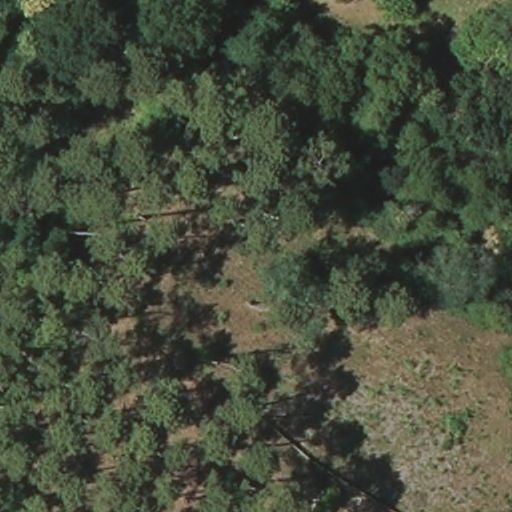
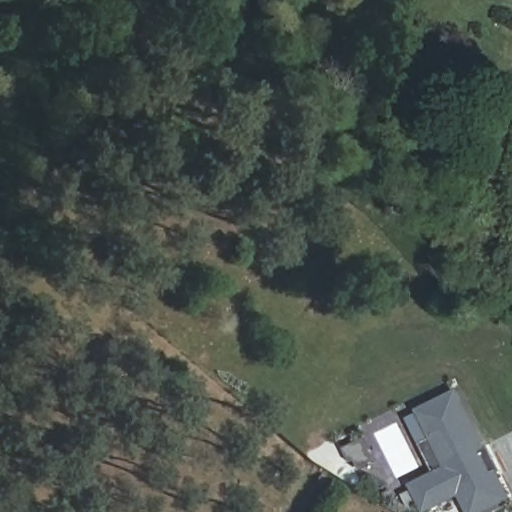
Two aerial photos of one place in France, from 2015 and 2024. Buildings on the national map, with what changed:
new [(467,512),(460,498),(430,512),(423,512),(410,485),(434,472),(421,445),(431,440),(416,410),(459,390),(512,497),(512,502),(491,512),(467,512)]

